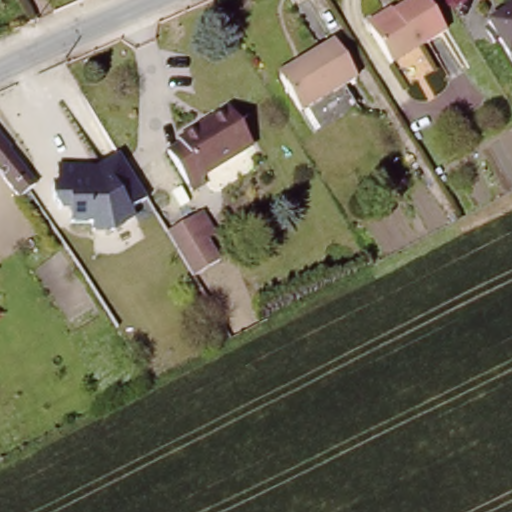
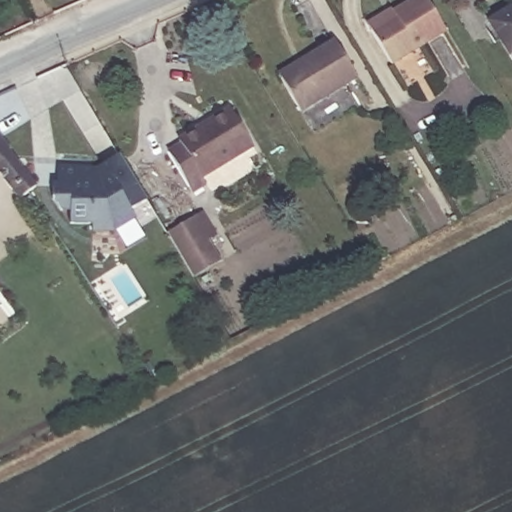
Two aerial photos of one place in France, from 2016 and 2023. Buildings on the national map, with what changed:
unchanged [(387,69),(367,33),(362,26),(388,12),(390,15),(418,0),(421,0),(442,37),(387,69)]
unchanged [(485,22),(495,16),(512,6),(512,50),(505,55),(485,22)]
unchanged [(352,75),(342,81),(355,101),(310,130),(277,79),(275,74),(296,60),(329,39),(352,75)]
unchanged [(250,152),(186,190),(167,159),(180,151),(177,145),(212,125),(228,115),(250,152)]
unchanged [(3,155),(32,190),(15,202),(0,183),(0,147),(5,153),(3,155)]
unchanged [(148,197),(128,210),(134,219),(114,231),(92,231),(92,227),(70,226),(68,215),(58,215),(52,204),(52,185),(57,185),(57,165),(97,166),(118,154),(148,197)]
unchanged [(188,280),(162,238),(188,223),(195,220),(209,244),(203,247),(213,265),(188,280)]

